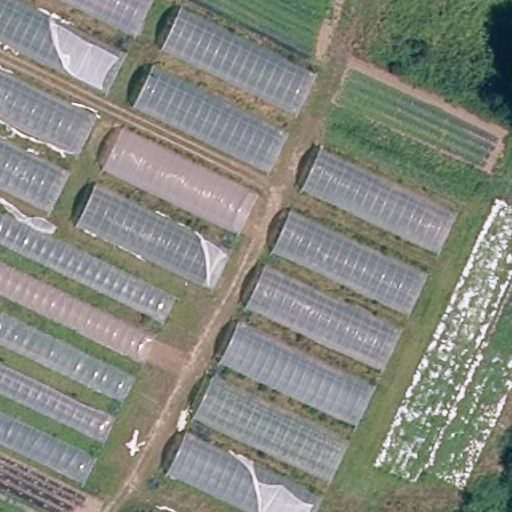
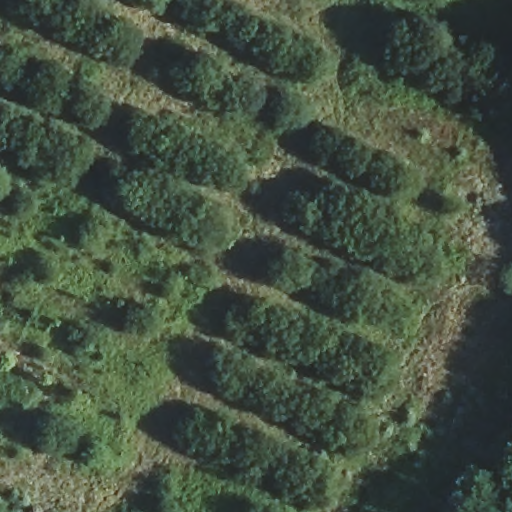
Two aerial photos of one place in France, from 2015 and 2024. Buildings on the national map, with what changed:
demolished [(0,0),(166,0),(317,76),(214,290),(0,186),(0,0)]
demolished [(320,512),(254,512),(172,471),(323,152),(461,221),(320,512)]
demolished [(0,221),(173,302),(80,487),(0,449),(0,221)]

